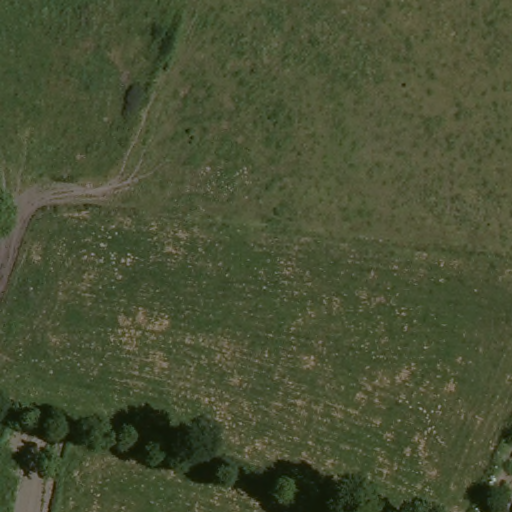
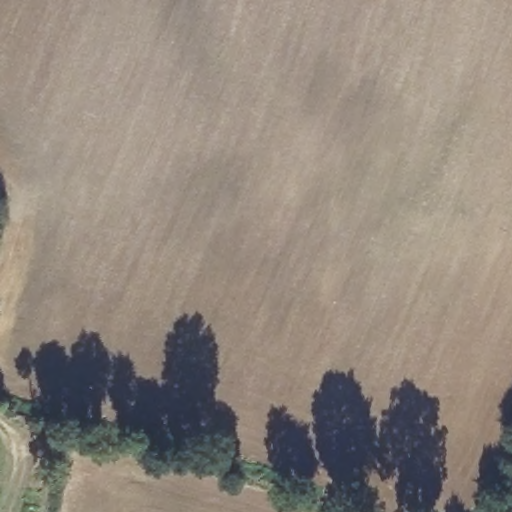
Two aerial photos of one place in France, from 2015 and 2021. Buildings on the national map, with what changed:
[]

